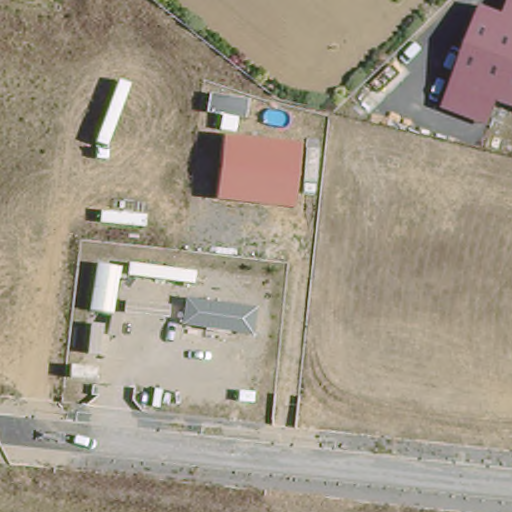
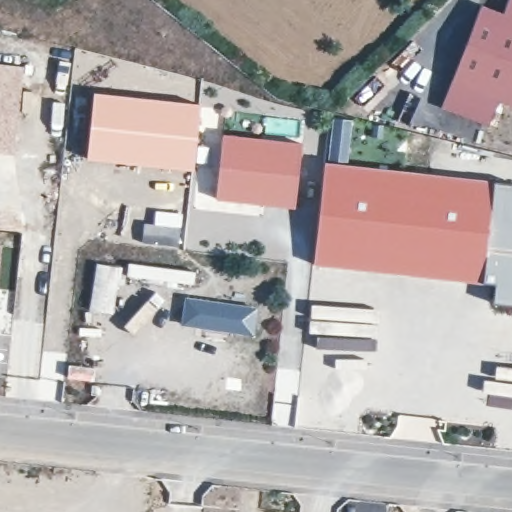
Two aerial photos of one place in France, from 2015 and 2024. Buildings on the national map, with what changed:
unchanged [(497,104),(487,126),(440,109),(479,5),(504,13),(509,0),(512,0),(512,109),(497,104)]
new [(15,150),(0,148),(0,67),(23,70),(15,150)]
new [(92,92),(200,104),(197,146),(195,161),(194,171),(85,160),(92,92)]
unchanged [(304,142),(295,211),(215,201),(224,133),(304,142)]
new [(325,160),(512,180),(512,303),(489,300),(492,280),(314,261),(325,160)]
new [(144,223),(153,224),(155,211),(182,214),(179,245),(142,241),(144,223)]
new [(112,314),(90,310),(99,263),(120,267),(112,314)]
unchanged [(257,306),(254,336),(185,329),(189,299),(257,306)]

